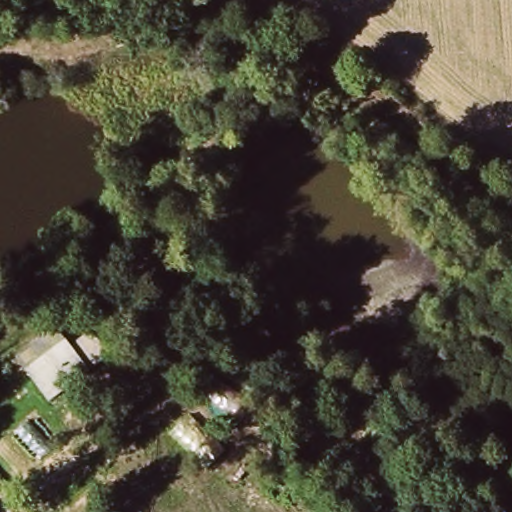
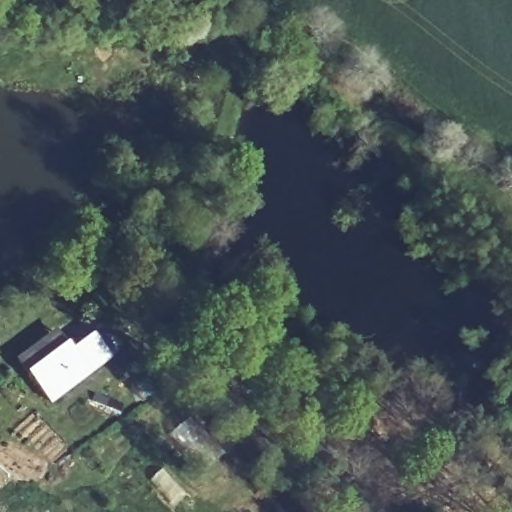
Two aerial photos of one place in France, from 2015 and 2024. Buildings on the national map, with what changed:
unchanged [(73,340),(76,345),(97,333),(112,355),(54,401),(31,369),(18,358),(62,328),(73,340)]

